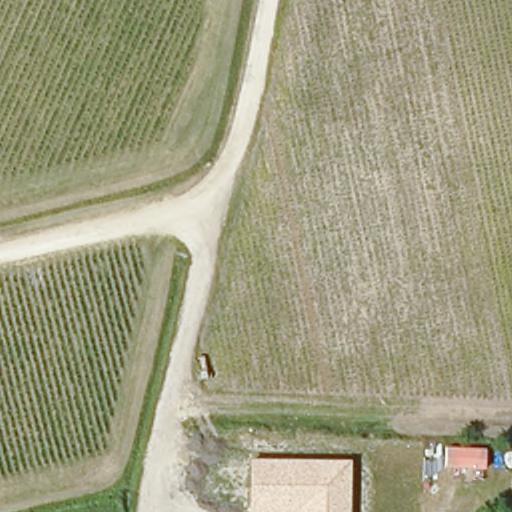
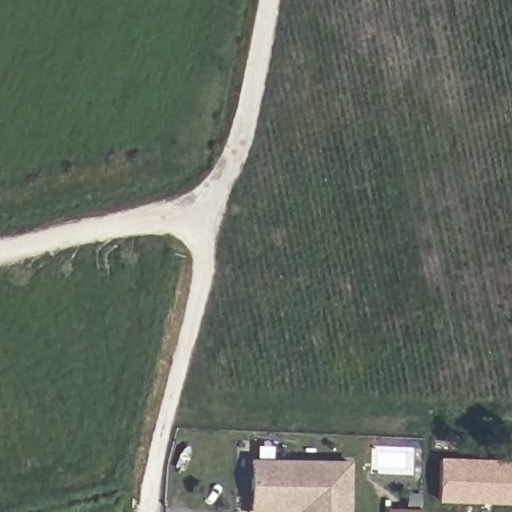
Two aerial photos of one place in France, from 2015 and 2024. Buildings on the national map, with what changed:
unchanged [(249,512),(250,459),(352,459),(352,512),(249,512)]
new [(434,501),(435,461),(512,464),(512,504),(434,501)]
new [(383,512),(383,510),(395,510),(416,510),(416,512),(383,512)]

